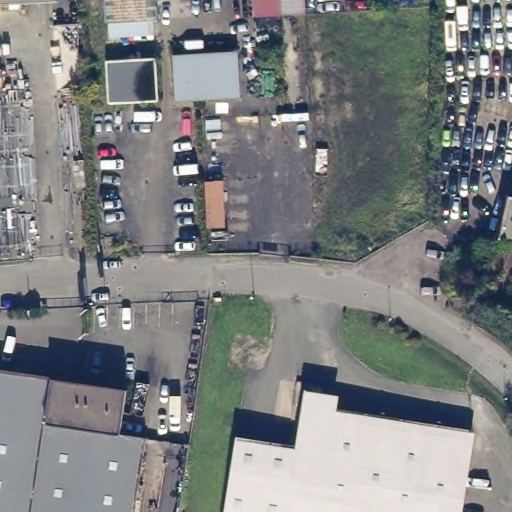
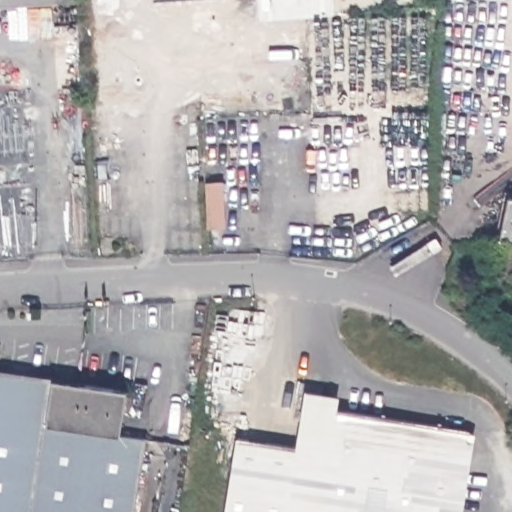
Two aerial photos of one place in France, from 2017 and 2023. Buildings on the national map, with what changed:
unchanged [(0,5),(0,0),(6,0),(6,5),(0,5)]
unchanged [(6,0),(54,0),(54,1),(6,5),(6,0)]
unchanged [(93,0),(147,0),(148,23),(143,23),(143,37),(100,39),(100,25),(94,25),(93,0)]
unchanged [(251,9),(250,0),(300,0),(301,6),(251,9)]
demolished [(291,8),(299,95),(284,96),(276,9),(291,8)]
demolished [(236,50),(238,96),(173,101),(169,55),(236,50)]
demolished [(106,57),(155,56),(156,99),(108,100),(106,57)]
unchanged [(512,198),(512,245),(499,242),(508,197),(512,198)]
unchanged [(121,392),(114,436),(141,441),(130,512),(0,512),(0,375),(121,392)]
unchanged [(456,500),(455,512),(220,512),(233,434),(296,441),(304,400),(319,402),(446,426),(463,429),(459,465),(459,467),(460,488),(456,500)]

